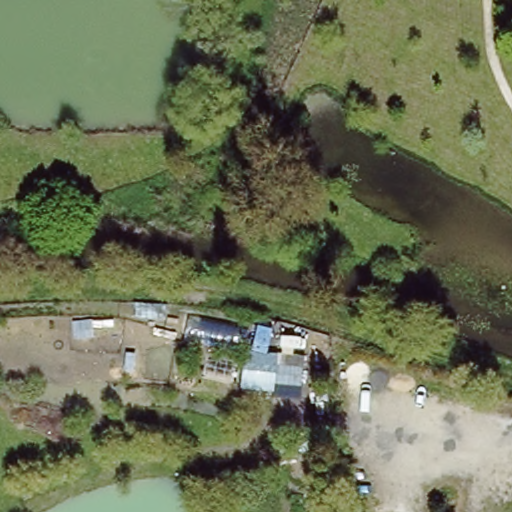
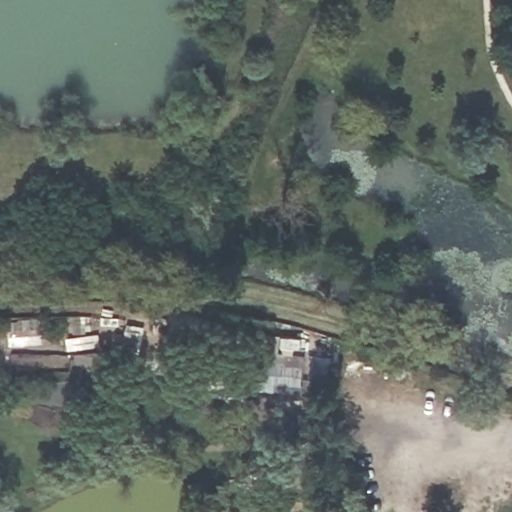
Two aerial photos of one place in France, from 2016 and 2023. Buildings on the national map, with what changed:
unchanged [(296,353),(295,365),(305,366),(302,397),(271,394),(275,351),(296,353)]

